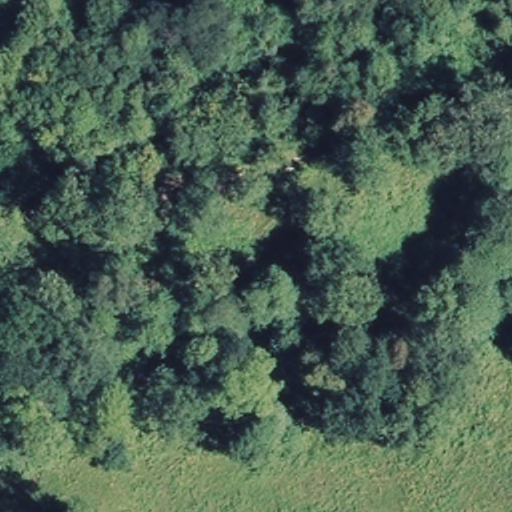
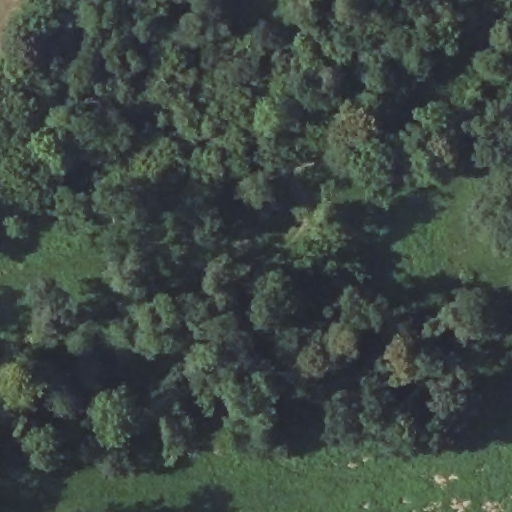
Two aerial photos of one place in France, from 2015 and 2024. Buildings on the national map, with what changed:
[]

